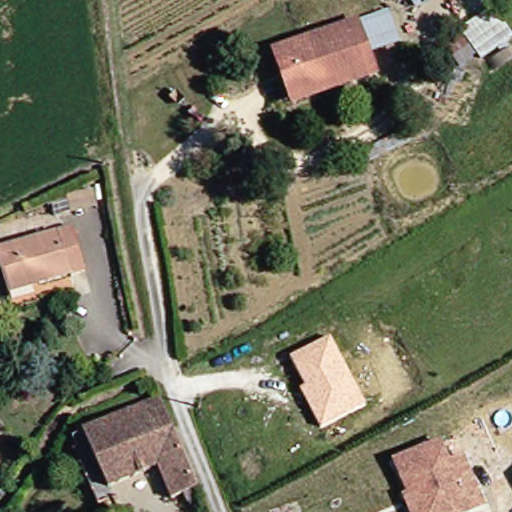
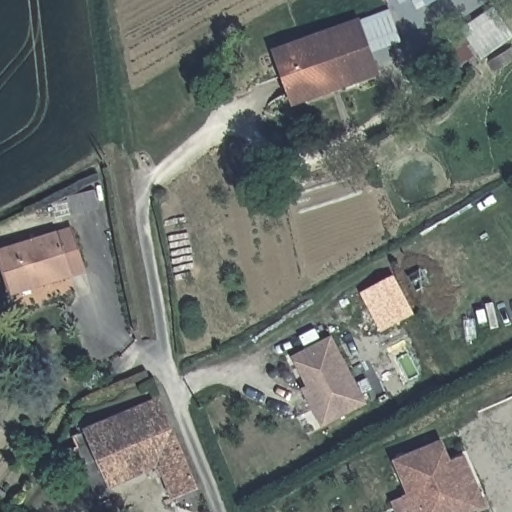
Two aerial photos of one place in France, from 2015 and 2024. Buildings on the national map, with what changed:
unchanged [(407,0),(405,1),(404,0),(407,0)]
unchanged [(427,0),(436,0),(429,4),(427,0)]
unchanged [(391,11),(402,41),(376,50),(365,21),(391,11)]
unchanged [(470,35),(467,32),(497,11),(512,32),(512,40),(486,59),(482,53),(465,66),(451,48),(470,35)]
unchanged [(295,95),(279,51),(362,21),(382,75),(363,81),(298,105),(295,95)]
unchanged [(12,289),(1,253),(77,228),(91,272),(45,286),(15,296),(12,289)]
new [(373,312),(362,292),(391,277),(410,313),(388,324),(382,328),(373,312)]
unchanged [(301,391),(306,389),(290,358),(330,338),(365,404),(320,430),(301,391)]
unchanged [(192,500),(189,491),(177,495),(163,462),(116,483),(90,426),(150,400),(165,393),(178,424),(203,485),(200,486),(205,495),(192,500)]
unchanged [(116,483),(120,493),(106,500),(80,443),(83,442),(78,431),(90,426),(116,483)]
unchanged [(450,464),(463,458),(475,485),(485,505),(469,512),(411,512),(410,510),(415,507),(395,463),(440,443),(450,464)]

